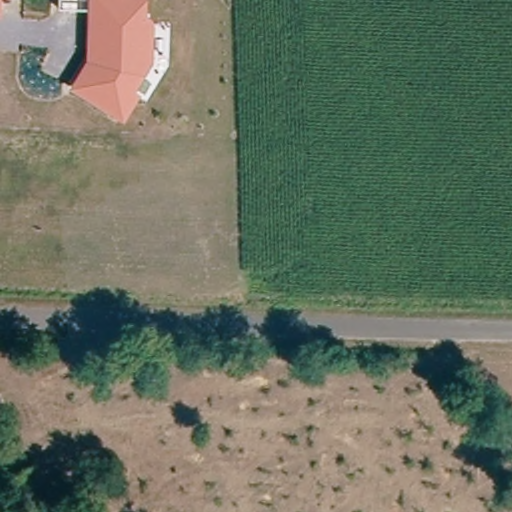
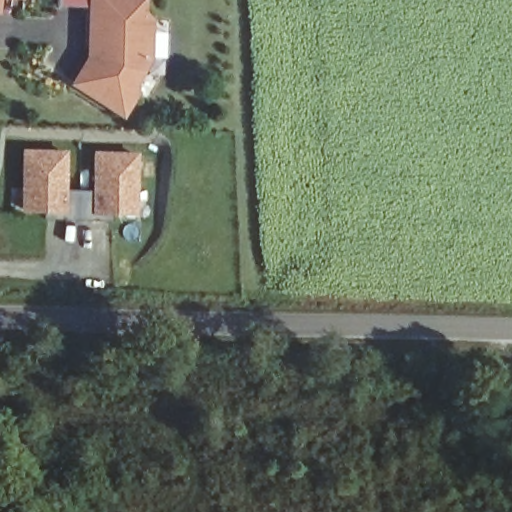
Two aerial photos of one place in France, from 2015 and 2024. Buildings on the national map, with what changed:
demolished [(34,0),(76,0),(75,16),(33,14),(34,0)]
new [(56,5),(57,0),(91,0),(91,6),(56,5)]
unchanged [(143,11),(151,19),(150,57),(126,88),(134,92),(120,112),(75,80),(98,44),(99,16),(91,16),(91,0),(144,0),(143,11)]
new [(22,149),(70,150),(69,189),(93,190),(94,150),(141,152),(140,215),(116,214),(116,221),(45,218),(45,212),(21,211),(22,149)]

